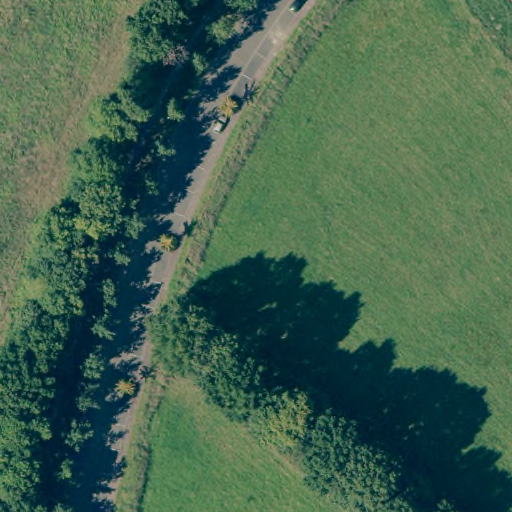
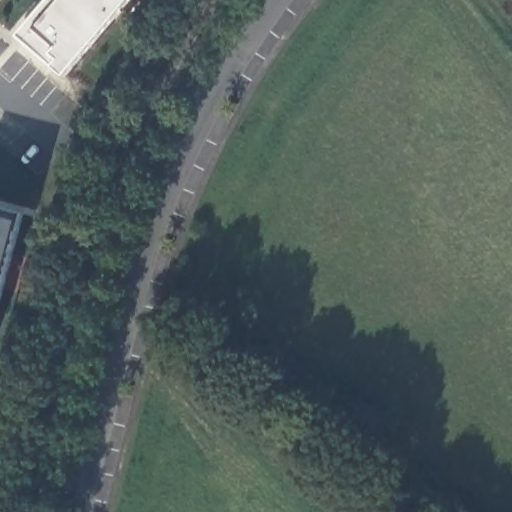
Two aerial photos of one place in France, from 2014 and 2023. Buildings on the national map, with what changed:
new [(49,0),(130,0),(65,78),(16,37),(49,0)]

